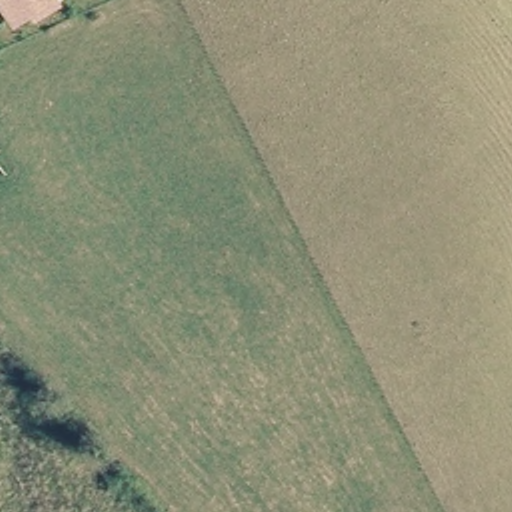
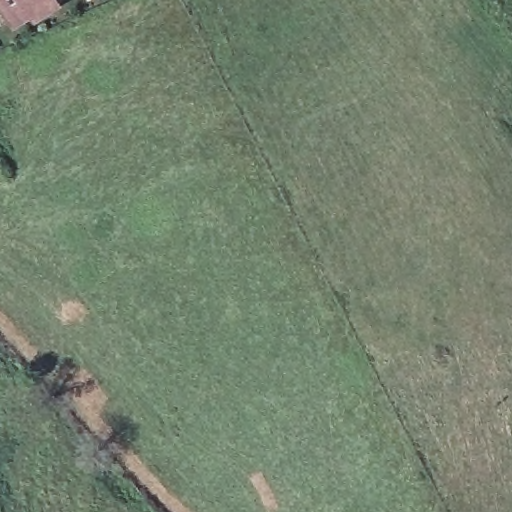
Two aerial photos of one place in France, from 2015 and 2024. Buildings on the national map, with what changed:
unchanged [(17,27),(0,2),(0,0),(26,0),(25,1),(36,15),(17,27)]

